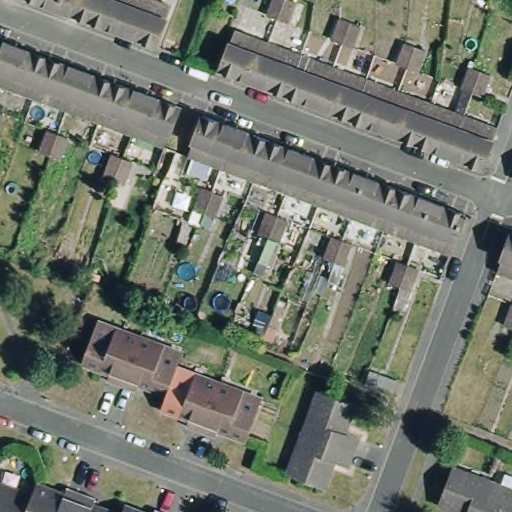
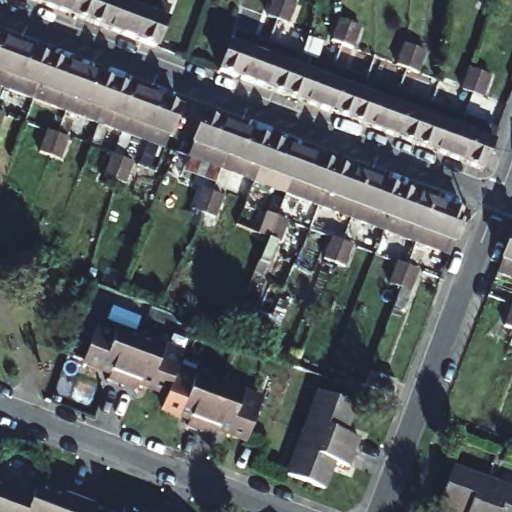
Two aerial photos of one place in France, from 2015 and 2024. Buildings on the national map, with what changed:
unchanged [(163,18),(153,45),(120,33),(106,28),(87,21),(55,9),(54,8),(32,0),(155,0),(168,5),(163,18)]
unchanged [(271,10),(275,0),(282,0),(286,1),(295,5),(286,26),(277,23),(273,21),(267,19),(271,10)]
unchanged [(359,30),(351,51),(340,46),(331,43),(339,22),(350,26),(359,30)]
unchanged [(23,41),(37,46),(55,53),(87,65),(88,66),(119,77),(137,84),(151,89),(182,101),(171,129),(166,141),(136,130),(104,118),(73,106),(40,94),(8,82),(0,79),(0,32),(23,41)]
unchanged [(255,86),(221,74),(232,46),(237,33),(270,46),(303,58),(336,70),(368,82),(400,94),(433,106),(466,119),(500,131),(495,146),(494,148),(485,173),(461,164),(451,160),(418,147),(411,145),(386,135),(352,123),(320,111),(311,108),(287,99),(261,89),(255,86)]
unchanged [(418,77),(406,73),(396,69),(405,46),(408,48),(416,51),(427,55),(418,77)]
unchanged [(483,101),(473,98),(462,93),(472,70),(479,73),(482,74),(493,79),(483,101)]
unchanged [(218,161),(186,150),(189,140),(200,111),(228,121),(233,124),(265,136),(278,140),(298,148),(328,159),(331,160),(364,173),(378,178),(395,184),(428,196),(462,209),(451,237),(447,247),(414,235),(382,223),(350,211),(316,198),(283,186),(251,174),(218,161)]
unchanged [(3,118),(0,126),(0,117),(3,118)]
unchanged [(70,143),(61,165),(53,162),(42,158),(51,135),(60,139),(70,143)]
unchanged [(125,189),(116,186),(104,181),(113,159),(123,163),(134,168),(125,189)]
unchanged [(214,222),(204,218),(194,214),(204,190),(215,194),(224,198),(214,222)]
unchanged [(278,244),(269,241),(259,237),(267,214),(279,218),(286,221),(278,244)]
unchanged [(504,255),(512,232),(512,273),(499,268),(504,255)]
unchanged [(345,269),(337,266),(326,262),(335,240),(346,244),(353,247),(345,269)]
unchanged [(420,272),(412,294),(402,290),(392,287),(401,265),(410,268),(420,272)]
unchanged [(511,308),(512,308),(512,333),(503,330),(511,308)]
unchanged [(121,390),(107,385),(111,374),(103,371),(102,375),(81,367),(95,329),(138,345),(121,390)]
unchanged [(138,345),(180,360),(175,373),(166,398),(147,391),(148,387),(139,384),(135,395),(121,390),(138,345)]
unchanged [(186,430),(190,420),(180,416),(179,419),(161,413),(166,398),(175,373),(217,388),(200,435),(186,430)]
unchanged [(374,375),(400,385),(394,399),(368,389),(374,375)]
unchanged [(217,388),(260,403),(246,443),(226,436),(227,433),(217,429),(214,440),(200,435),(217,388)]
unchanged [(299,433),(315,392),(353,407),(342,433),(356,438),(350,452),(299,433)]
unchanged [(468,433),(453,427),(462,402),(480,409),(470,434),(468,433)]
unchanged [(350,452),(344,467),(332,461),(320,489),(282,473),(299,433),(350,452)]
unchanged [(489,512),(470,512),(444,502),(459,465),(501,481),(489,512)]
unchanged [(27,512),(0,512),(0,481),(34,493),(27,512)]
unchanged [(512,485),(512,512),(489,512),(501,481),(512,485)]
unchanged [(74,512),(27,512),(34,493),(38,482),(58,489),(57,493),(65,495),(69,486),(82,491),(74,512)]
unchanged [(82,491),(96,496),(93,505),(102,509),(104,505),(122,512),(74,512),(82,491)]
unchanged [(126,504),(144,511),(143,512),(123,512),(126,504)]
unchanged [(170,512),(154,512),(156,506),(170,511),(170,512)]
unchanged [(170,511),(173,512),(170,512),(170,511)]

